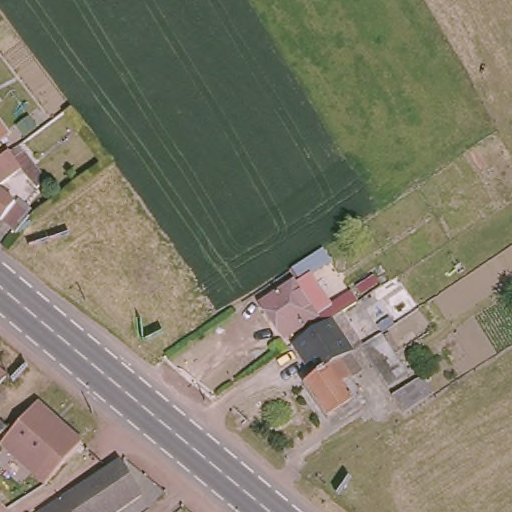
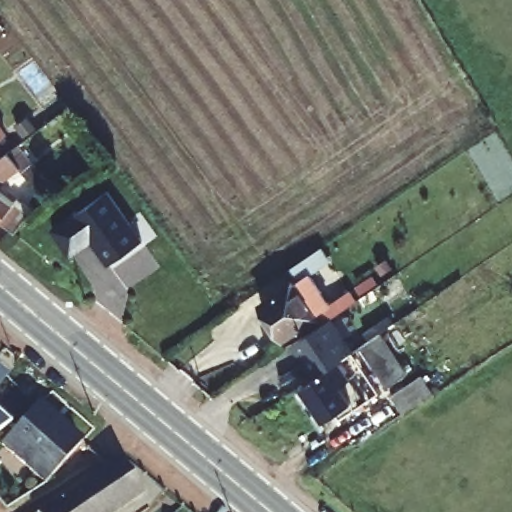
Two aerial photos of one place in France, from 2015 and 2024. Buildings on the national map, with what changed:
unchanged [(8,134),(0,140),(0,123),(8,134)]
unchanged [(34,160),(48,178),(37,186),(23,166),(0,183),(0,157),(20,142),(34,160)]
unchanged [(29,213),(16,231),(0,219),(0,188),(29,213)]
new [(110,263),(92,240),(71,255),(51,227),(109,191),(144,238),(110,263)]
unchanged [(310,273),(331,305),(352,291),(359,301),(345,310),(336,316),(331,319),(330,319),(329,321),(316,329),(311,322),(286,338),(263,305),(301,279),(294,268),(300,264),(324,247),(331,259),(310,273)]
unchanged [(399,359),(408,373),(408,374),(388,388),(373,366),(359,346),(379,332),(363,308),(377,300),(392,324),(381,331),(390,345),(399,359)]
unchanged [(350,352),(315,376),(293,344),(316,329),(329,321),(330,319),(351,351),(350,352)]
unchanged [(327,420),(315,402),(303,384),(315,376),(350,352),(363,372),(353,379),(364,395),(358,399),(362,405),(347,415),(344,409),(336,415),(327,420)]
unchanged [(9,375),(0,383),(0,367),(9,375)]
unchanged [(424,375),(435,394),(424,401),(405,413),(393,396),(424,375)]
unchanged [(47,482),(4,444),(30,412),(38,402),(40,405),(84,444),(47,482)]
unchanged [(9,427),(0,433),(0,417),(9,427)]
unchanged [(117,459),(142,493),(113,512),(36,512),(117,459)]

